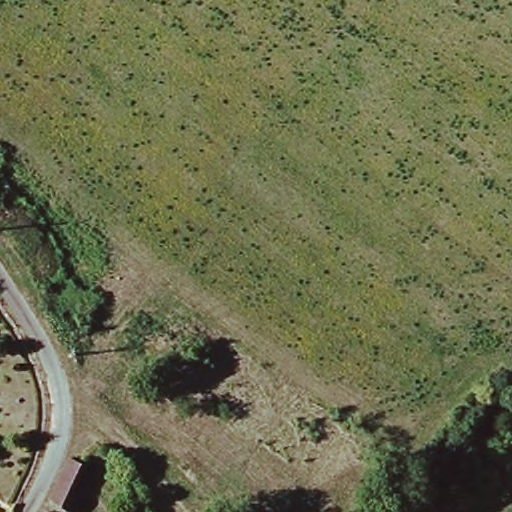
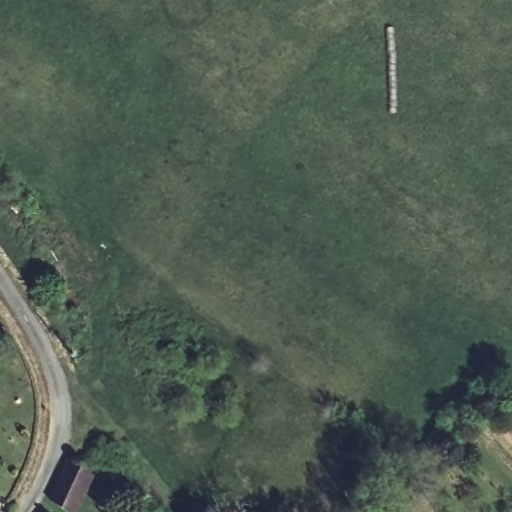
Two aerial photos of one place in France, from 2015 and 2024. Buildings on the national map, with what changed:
unchanged [(80,512),(70,512),(55,502),(73,462),(95,478),(80,512)]
unchanged [(43,512),(41,512),(42,511),(43,512)]

